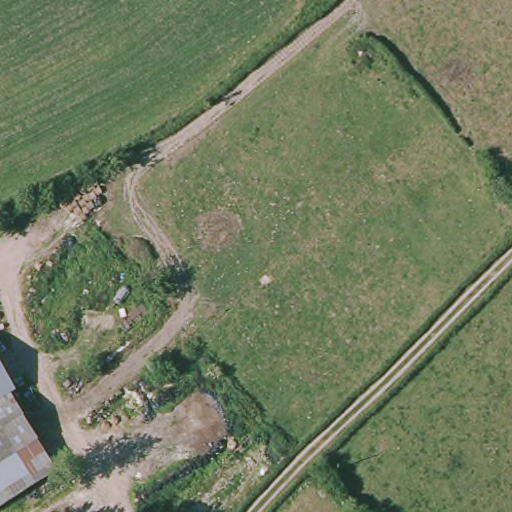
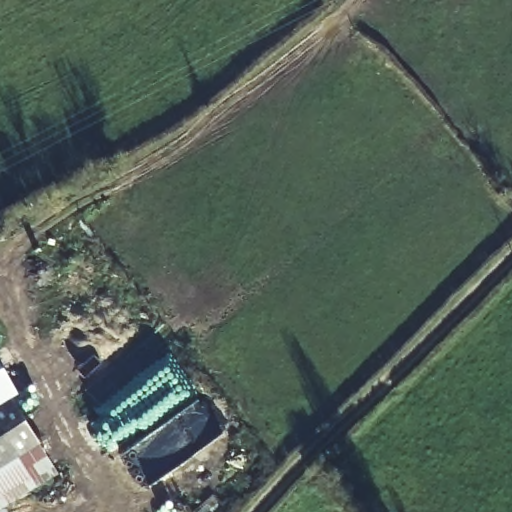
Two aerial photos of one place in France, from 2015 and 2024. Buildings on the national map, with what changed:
unchanged [(0,505),(0,388),(54,465),(0,505)]

